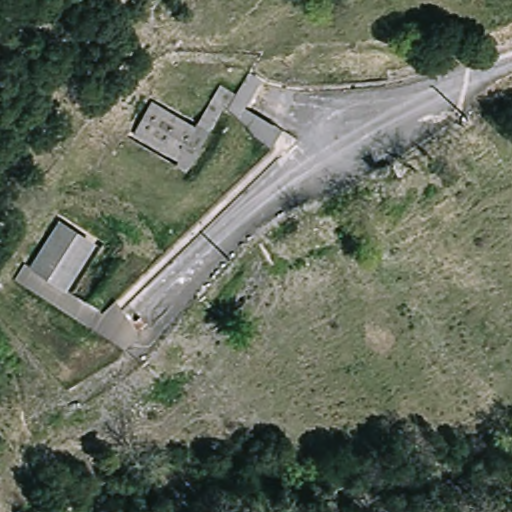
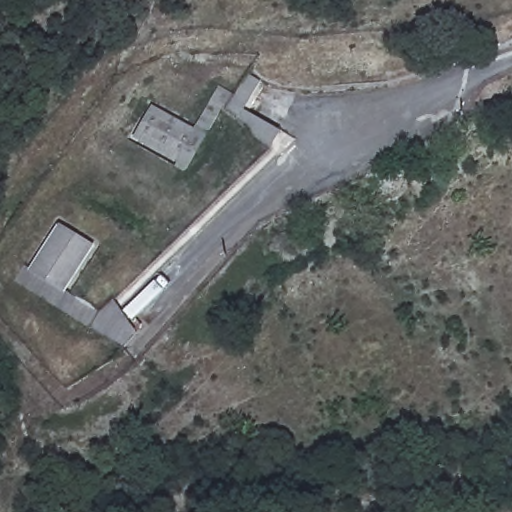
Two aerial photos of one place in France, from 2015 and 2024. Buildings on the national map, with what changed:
unchanged [(173,167),(175,162),(130,137),(132,133),(149,103),(192,128),(193,126),(217,86),(233,95),(247,74),(260,81),(242,110),(280,131),(268,149),(250,136),(237,120),(235,121),(221,109),(183,174),(173,167)]
unchanged [(22,265),(28,268),(57,222),(94,245),(65,291),(100,312),(113,300),(137,333),(122,351),(12,281),(22,265)]

